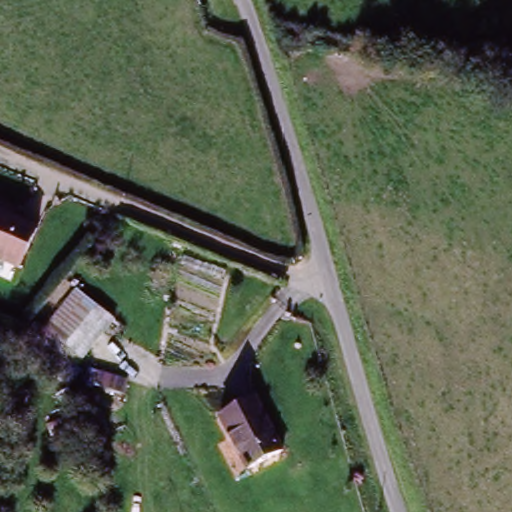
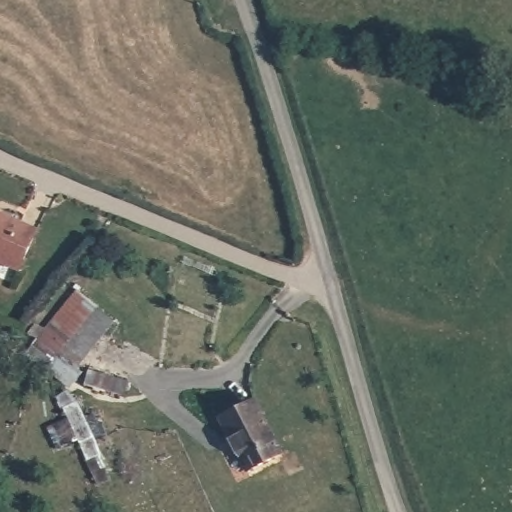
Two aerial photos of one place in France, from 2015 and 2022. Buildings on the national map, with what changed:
unchanged [(38,225),(19,267),(0,259),(0,209),(38,225)]
unchanged [(82,295),(113,323),(64,374),(35,348),(82,295)]
unchanged [(250,479),(216,418),(248,400),(283,462),(250,479)]

